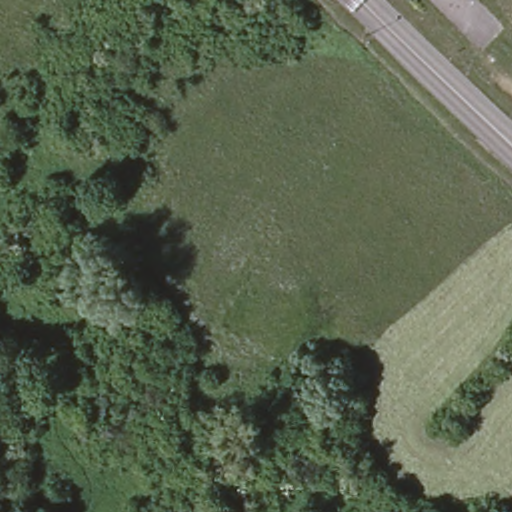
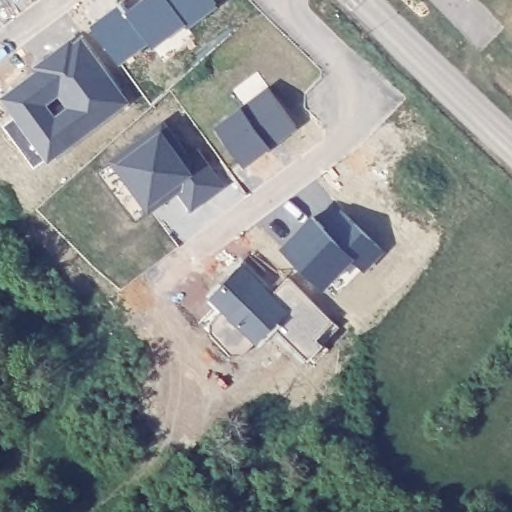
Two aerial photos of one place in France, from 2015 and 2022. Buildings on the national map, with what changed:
new [(123,3),(127,0),(212,0),(214,3),(185,24),(183,21),(151,44),(148,38),(118,60),(92,23),(122,1),(123,3)]
new [(19,113),(7,96),(28,80),(34,88),(49,77),(40,64),(70,43),(73,46),(81,41),(113,83),(109,86),(121,103),(34,167),(3,125),(19,113)]
new [(267,87),(295,125),(278,139),(274,134),(266,140),(269,145),(244,163),(216,124),(267,87)]
new [(163,123),(189,156),(197,150),(223,184),(193,206),(179,188),(150,209),(113,160),(163,123)]
new [(321,279),(286,246),(303,229),(314,216),(318,219),(327,229),(344,211),(382,247),(365,266),(353,254),(341,266),(325,283),(321,279)]
new [(214,295),(244,264),(273,292),(289,275),(341,325),(310,357),(274,321),(245,352),(233,352),(206,326),(200,320),(219,300),(214,295)]

